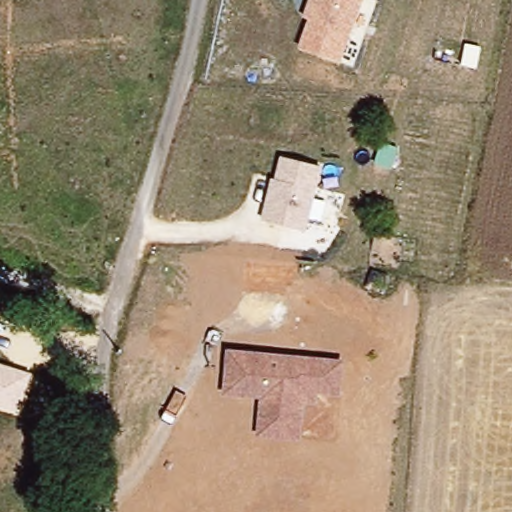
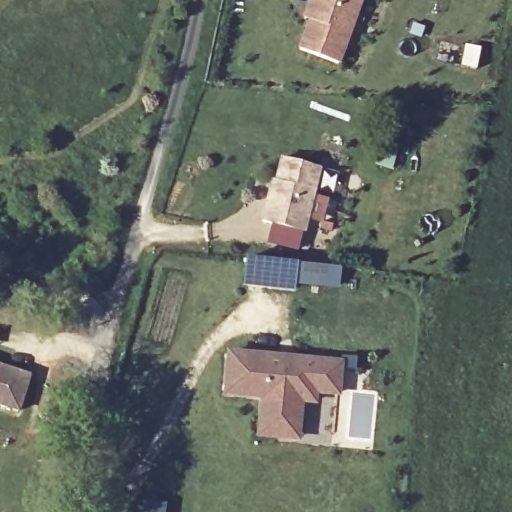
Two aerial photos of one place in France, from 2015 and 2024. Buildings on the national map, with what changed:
unchanged [(299,50),(309,21),(303,19),(309,0),(363,0),(342,64),(299,50)]
unchanged [(323,168),(308,232),(261,221),(271,179),(274,180),(279,159),(323,168)]
new [(296,292),(244,287),(247,259),(342,268),(340,289),(297,285),(296,292)]
unchanged [(379,278),(396,279),(389,301),(374,298),(379,278)]
unchanged [(343,360),(341,397),(318,395),(317,408),(303,406),(300,444),(254,439),(259,398),(222,396),(226,351),(343,360)]
unchanged [(18,411),(0,405),(0,365),(30,375),(18,411)]

